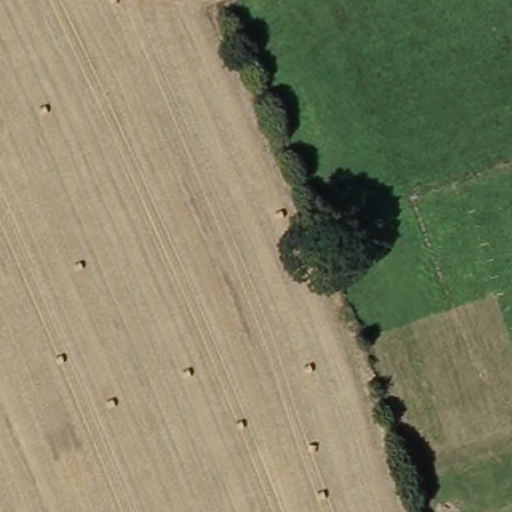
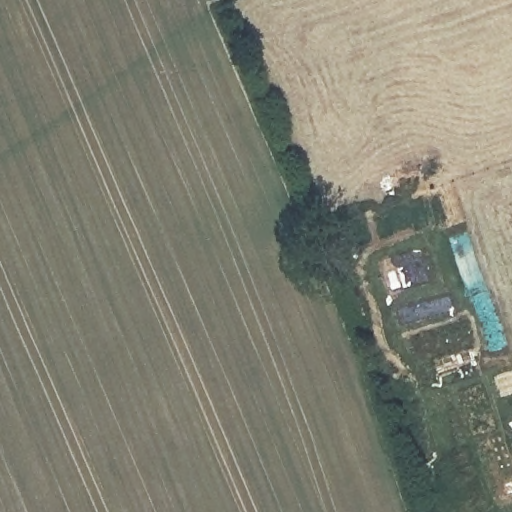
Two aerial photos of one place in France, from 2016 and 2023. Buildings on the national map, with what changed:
[]

